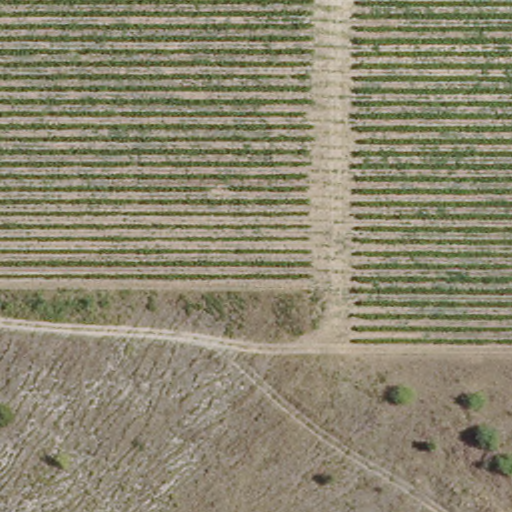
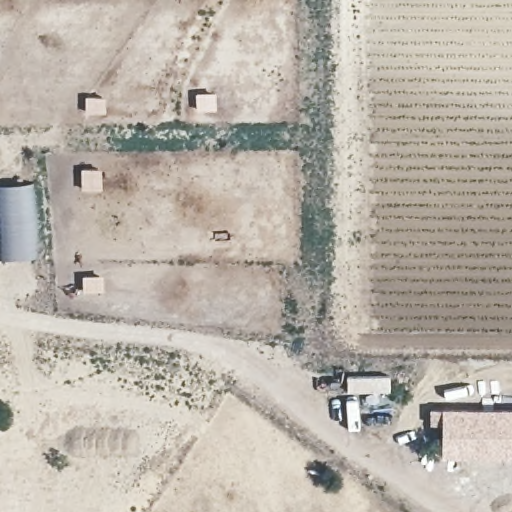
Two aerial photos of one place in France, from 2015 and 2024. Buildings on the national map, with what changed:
new [(84,171),(104,172),(103,191),(83,190),(84,171)]
new [(32,183),(37,256),(5,258),(0,199),(0,186),(32,183)]
new [(87,273),(106,273),(106,293),(86,292),(87,273)]
new [(391,375),(391,392),(348,392),(347,376),(391,375)]
new [(441,457),(441,423),(430,423),(430,408),(512,408),(512,457),(441,457)]

